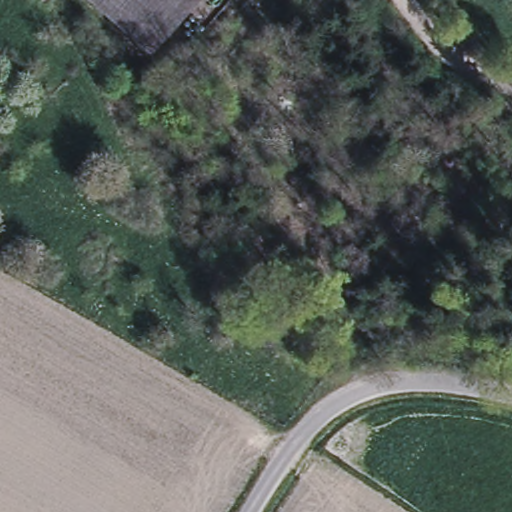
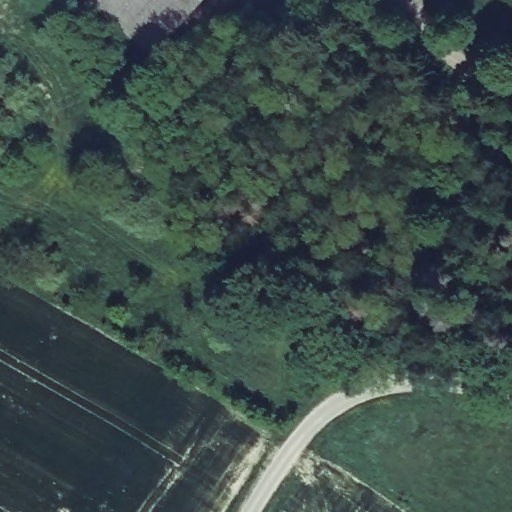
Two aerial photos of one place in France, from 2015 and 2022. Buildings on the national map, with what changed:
unchanged [(143,44),(93,0),(181,0),(143,44)]
unchanged [(160,60),(143,44),(181,0),(213,0),(160,60)]

